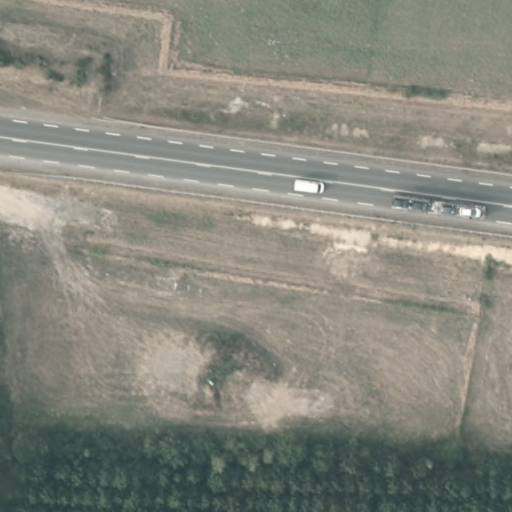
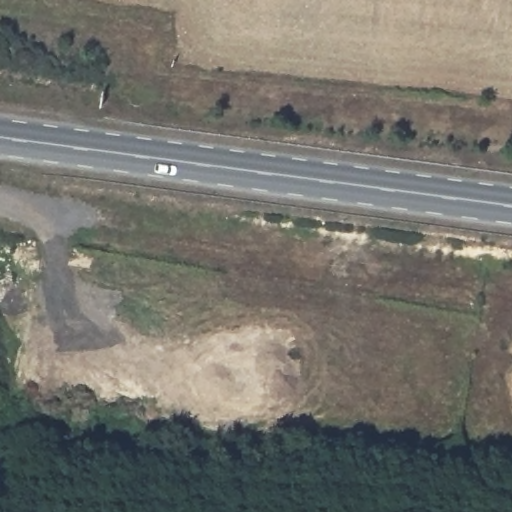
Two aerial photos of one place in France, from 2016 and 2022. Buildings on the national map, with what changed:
[]

